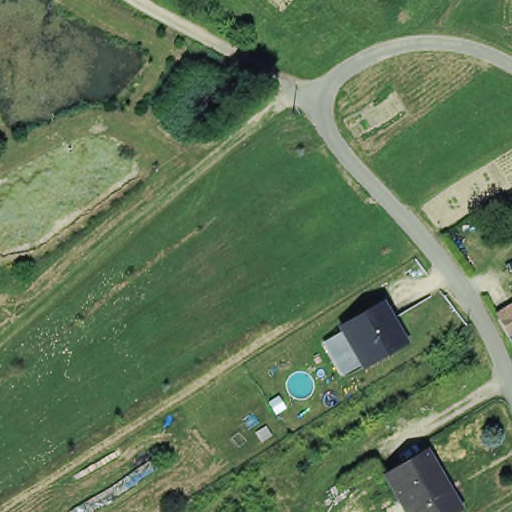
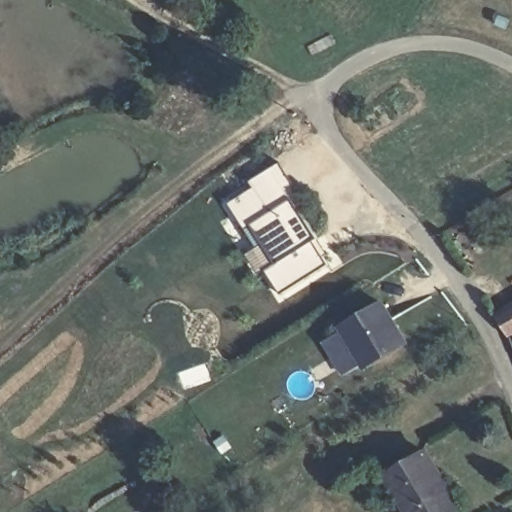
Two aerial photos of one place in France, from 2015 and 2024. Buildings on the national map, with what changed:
new [(282,294),(267,270),(276,263),(252,226),(247,228),(230,202),(255,187),(252,182),(282,164),(302,195),(293,201),(317,240),(315,242),(330,265),(282,294)]
unchanged [(365,370),(342,327),(387,302),(410,343),(365,370)]
unchanged [(500,320),(512,313),(512,336),(510,337),(500,320)]
unchanged [(430,457),(461,512),(409,512),(391,480),(430,457)]

